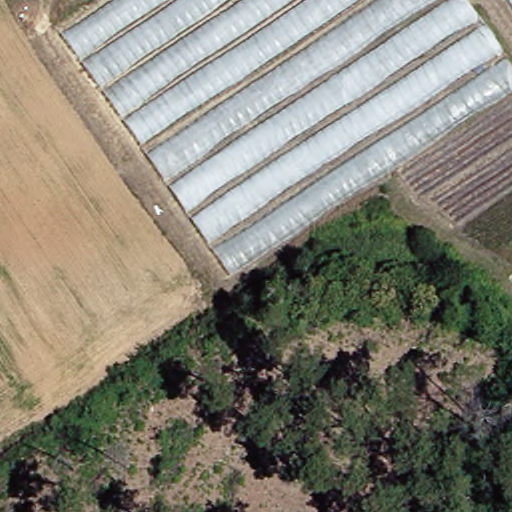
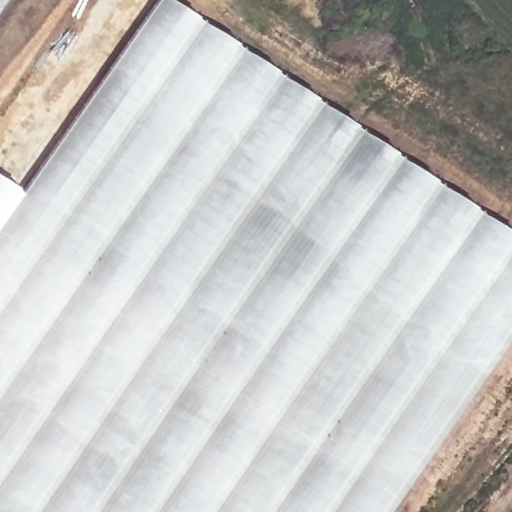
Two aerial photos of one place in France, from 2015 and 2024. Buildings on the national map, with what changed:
new [(0,0),(5,0),(0,8),(0,0)]
new [(160,0),(169,0),(512,238),(512,338),(391,512),(0,512),(0,175),(26,194),(160,0)]
demolished [(9,366),(25,391),(0,406),(0,27),(173,267),(9,366)]
demolished [(512,99),(512,176),(449,217),(400,172),(512,99)]

